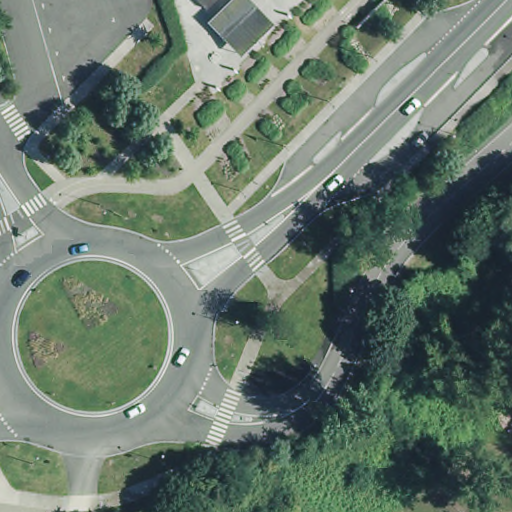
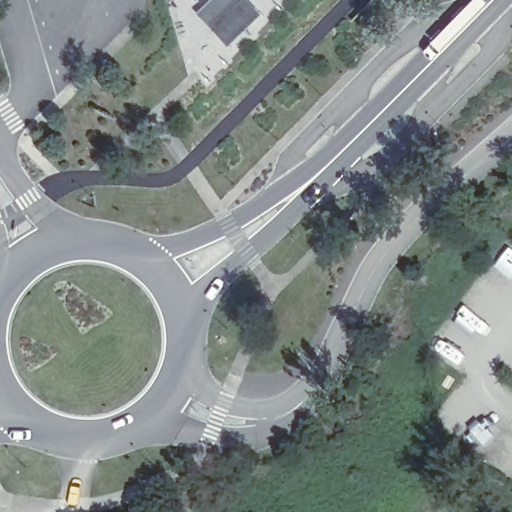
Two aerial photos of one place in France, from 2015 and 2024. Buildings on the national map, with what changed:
unchanged [(194,16),(210,0),(266,0),(271,5),(228,48),(194,16)]

